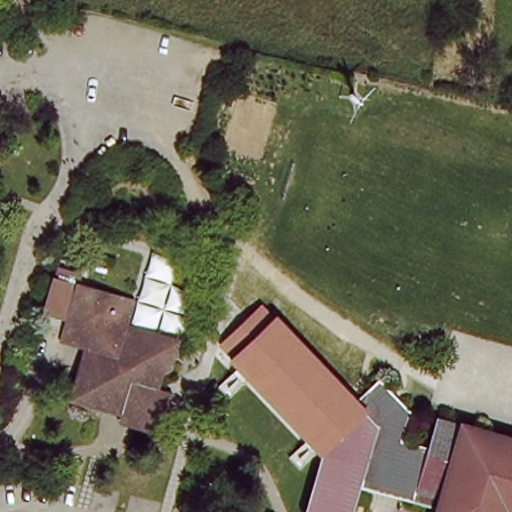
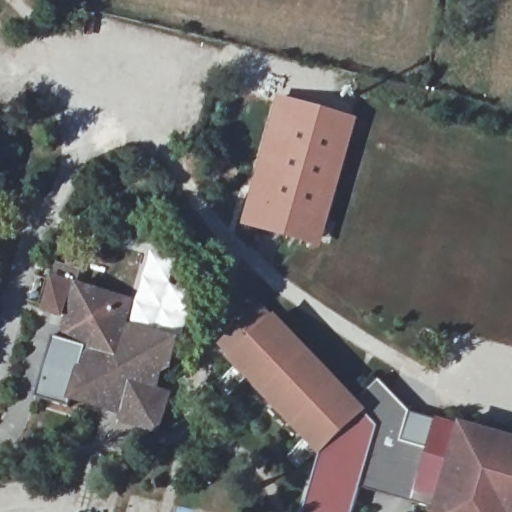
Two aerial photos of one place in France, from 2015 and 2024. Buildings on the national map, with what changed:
new [(259,149),(276,94),(359,117),(341,182),(321,248),(239,224),(259,149)]
unchanged [(131,299),(139,276),(188,290),(176,337),(125,323),(131,299)]
unchanged [(131,299),(125,323),(176,337),(169,365),(161,368),(155,387),(167,406),(160,431),(133,422),(126,405),(116,410),(69,396),(84,342),(62,337),(77,282),(131,299)]
unchanged [(376,380),(408,410),(404,441),(423,447),(437,415),(512,439),(512,512),(433,512),(436,501),(360,486),(349,512),(304,512),(321,457),(228,359),(277,318),(355,401),(376,380)]

